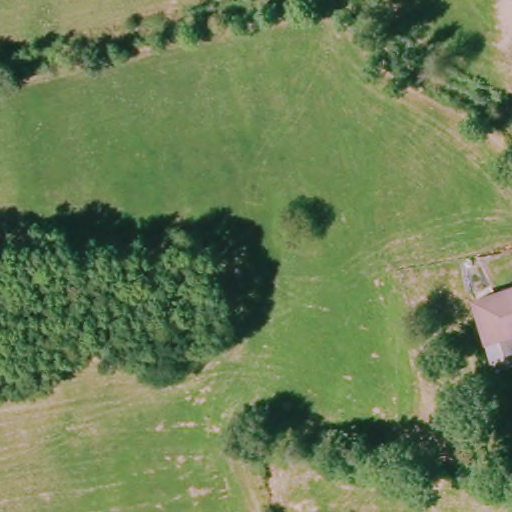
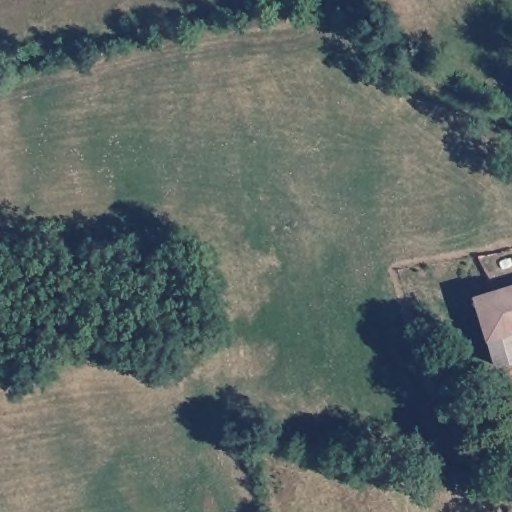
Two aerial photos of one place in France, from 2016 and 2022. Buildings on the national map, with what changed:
unchanged [(498,365),(492,338),(481,295),(512,287),(512,361),(498,365)]

